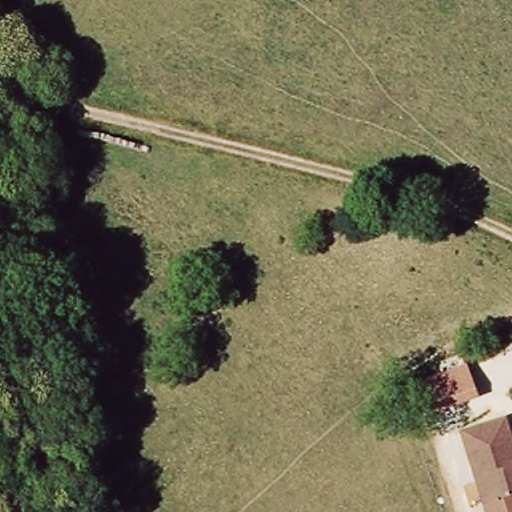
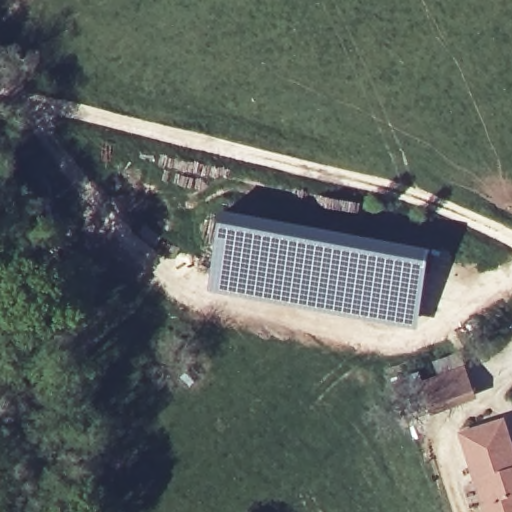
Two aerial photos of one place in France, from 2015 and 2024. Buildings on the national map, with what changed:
new [(223,210),(332,229),(433,249),(431,260),(221,221),(223,210)]
new [(221,221),(431,260),(419,331),(206,293),(221,221)]
new [(420,370),(423,378),(435,374),(431,362),(462,350),(478,398),(405,422),(389,380),(420,370)]
unchanged [(489,512),(464,438),(506,423),(512,441),(512,512),(489,512)]

